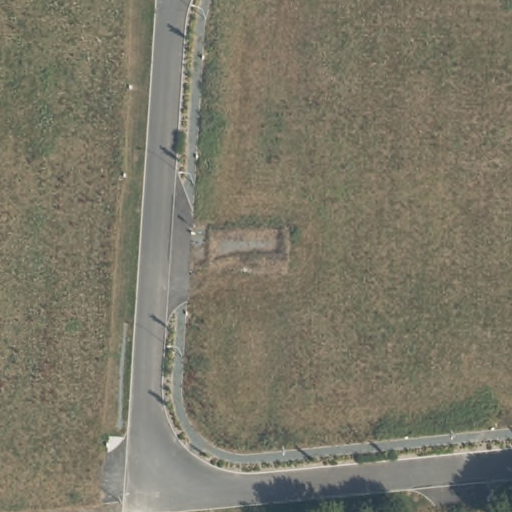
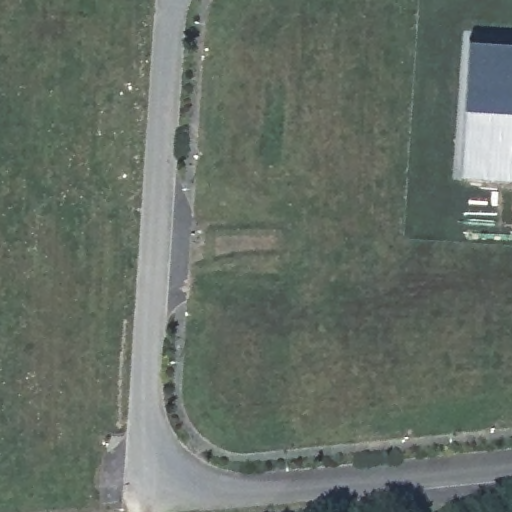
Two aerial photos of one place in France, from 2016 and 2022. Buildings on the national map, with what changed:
new [(512,40),(512,177),(461,174),(470,37),(512,40)]

